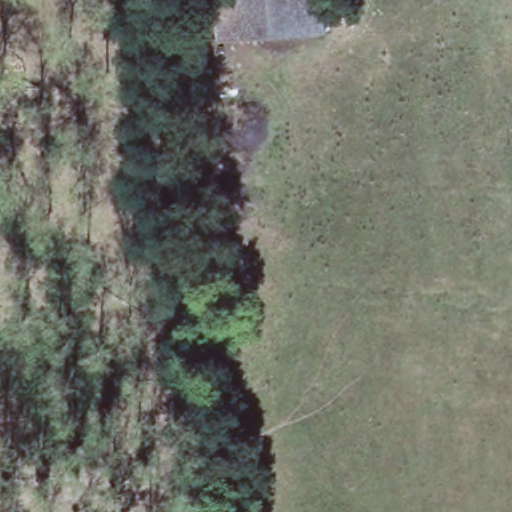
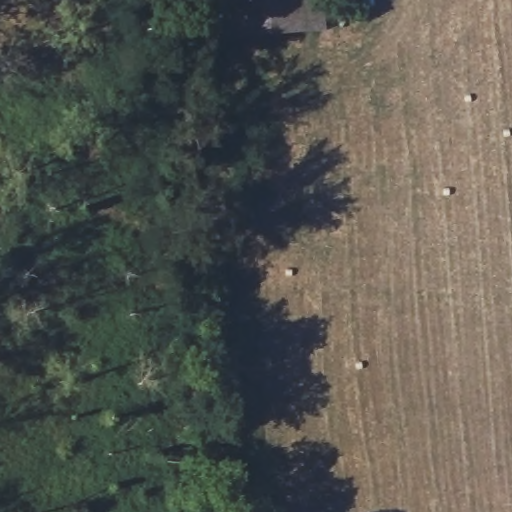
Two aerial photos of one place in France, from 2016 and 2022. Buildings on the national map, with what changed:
unchanged [(222,40),(219,0),(330,0),(333,29),(222,40)]

